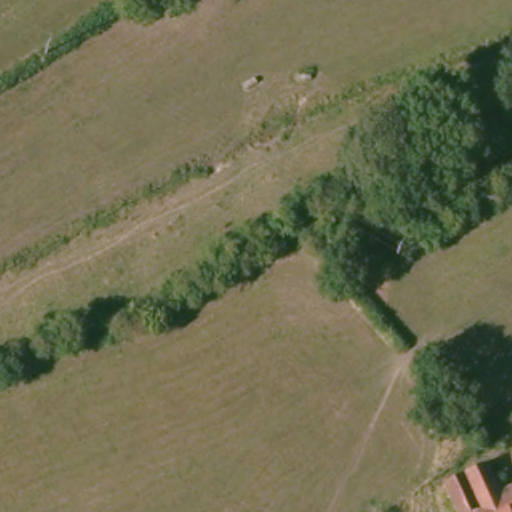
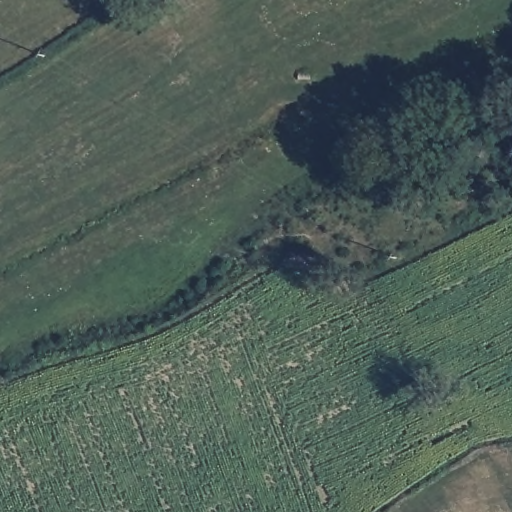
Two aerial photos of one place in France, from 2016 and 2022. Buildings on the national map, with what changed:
unchanged [(489,490),(497,487),(500,495),(512,490),(512,512),(447,512),(436,487),(481,469),(489,490)]

